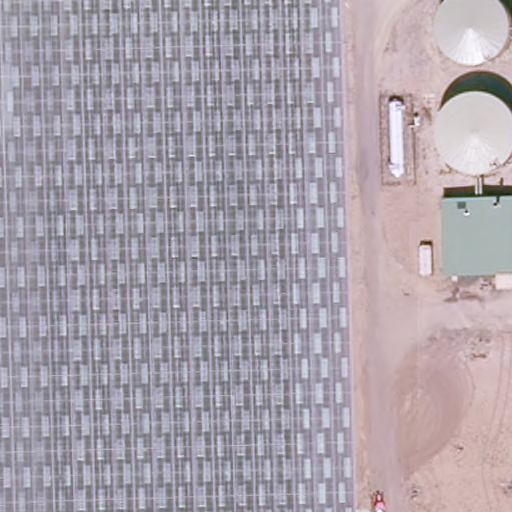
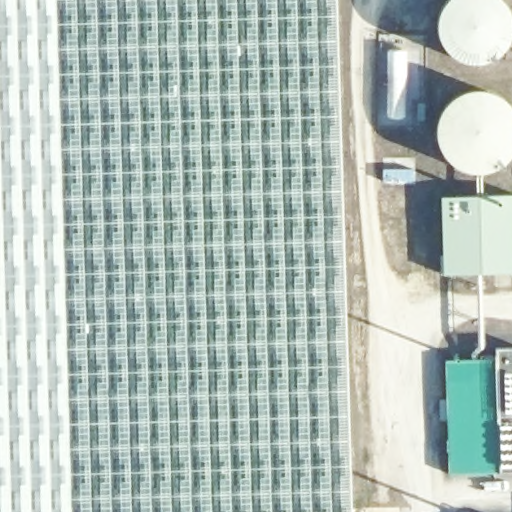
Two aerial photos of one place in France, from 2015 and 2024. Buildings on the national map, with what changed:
unchanged [(333,512),(0,512),(0,0),(310,0),(325,318),(333,512)]
unchanged [(445,192),(512,192),(512,269),(446,270),(445,192)]
new [(497,350),(512,349),(512,474),(454,476),(449,362),(498,360),(497,350)]

